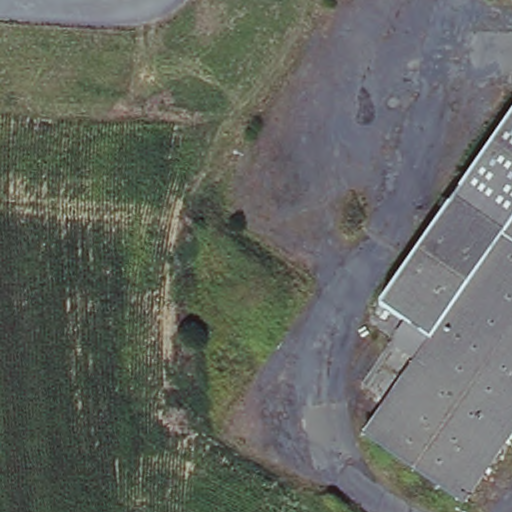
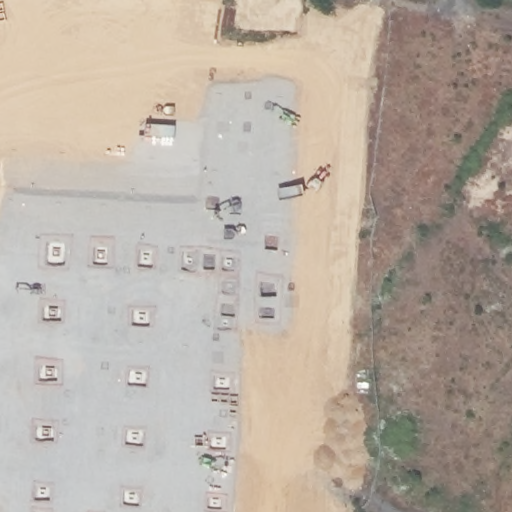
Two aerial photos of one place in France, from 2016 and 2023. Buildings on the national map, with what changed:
demolished [(422,245),(512,115),(512,437),(465,504),(364,433),(387,401),(421,352),(430,339),(417,331),(380,305),(422,245)]

